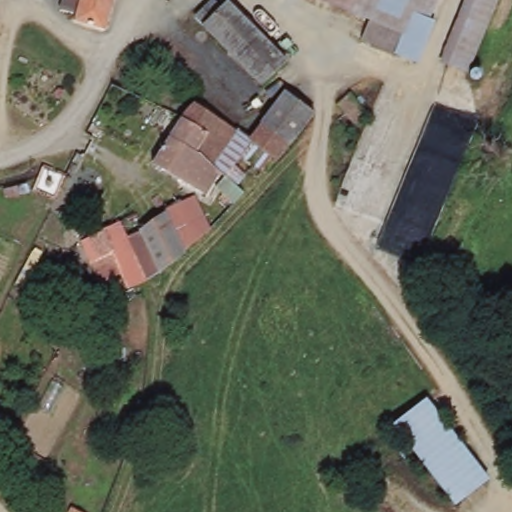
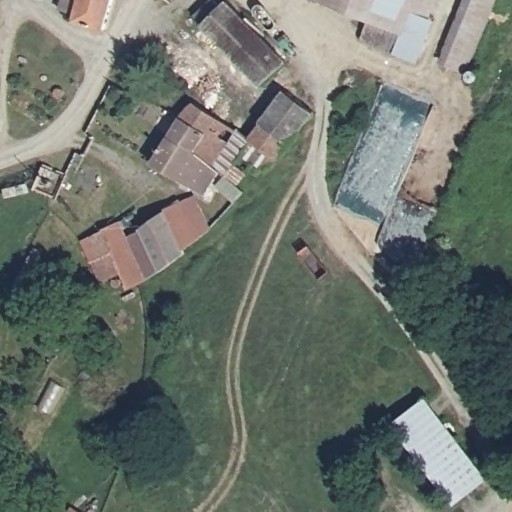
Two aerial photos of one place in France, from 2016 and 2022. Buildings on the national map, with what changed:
unchanged [(107,34),(76,24),(76,15),(68,14),(70,0),(116,0),(107,34)]
unchanged [(295,61),(271,84),(203,15),(217,0),(221,0),(226,5),(230,0),(233,0),(295,61)]
unchanged [(365,42),(376,21),(319,0),(447,0),(423,64),(365,42)]
unchanged [(479,0),(509,0),(480,77),(452,68),(479,0)]
unchanged [(339,103),(337,99),(350,87),(368,107),(355,120),(339,103)]
unchanged [(277,113),(292,93),(318,115),(302,135),(268,172),(248,156),(237,167),(248,177),(239,190),(221,176),(210,166),(222,152),(224,150),(188,122),(201,103),(252,142),(277,113)]
unchanged [(224,150),(222,152),(210,166),(221,176),(209,196),(158,167),(188,122),(224,150)]
unchanged [(147,235),(168,220),(164,214),(190,192),(212,230),(195,243),(186,250),(189,254),(164,271),(147,235)]
unchanged [(134,291),(125,272),(104,283),(94,262),(105,256),(96,237),(138,215),(147,235),(164,271),(146,285),(134,291)]
unchanged [(461,508),(395,426),(432,397),(493,480),(461,508)]

